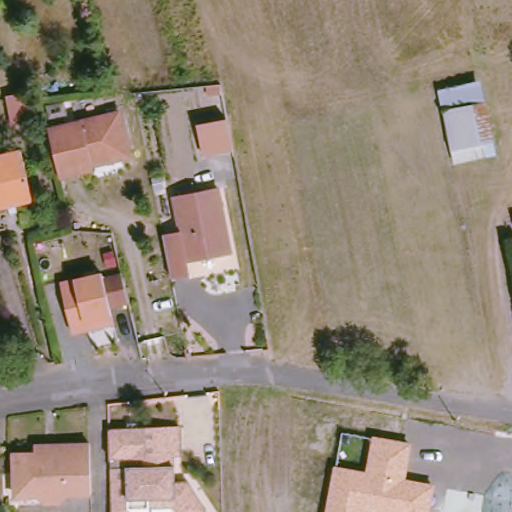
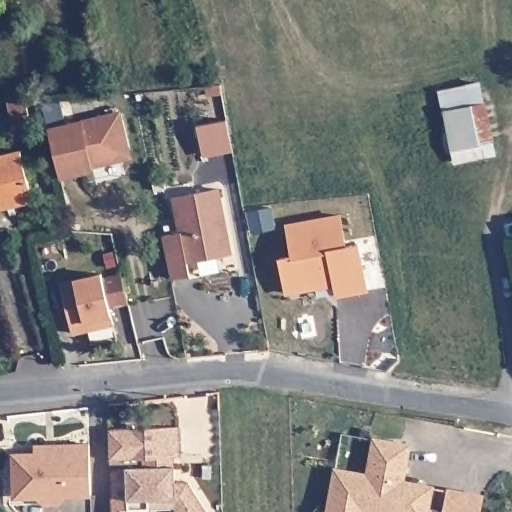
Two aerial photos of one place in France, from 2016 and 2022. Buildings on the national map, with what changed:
unchanged [(457,159),(444,91),(484,83),(497,152),(457,159)]
unchanged [(15,128),(8,101),(25,97),(32,124),(15,128)]
unchanged [(69,128),(89,123),(123,115),(131,150),(125,161),(110,164),(104,161),(98,162),(95,162),(96,171),(81,175),(63,178),(52,132),(69,128)]
unchanged [(30,201),(16,204),(14,197),(0,201),(0,158),(18,154),(30,201)]
unchanged [(194,277),(174,281),(167,239),(185,236),(178,202),(221,194),(226,212),(235,257),(222,260),(192,266),(194,277)]
new [(286,296),(278,260),(289,257),(284,225),(341,214),(346,245),(359,242),(368,292),(336,298),(334,287),(286,296)]
unchanged [(128,300),(109,305),(103,277),(120,273),(128,300)]
unchanged [(98,330),(73,334),(63,285),(103,277),(113,320),(96,323),(98,330)]
unchanged [(189,482),(211,506),(204,512),(177,512),(176,511),(151,511),(151,501),(131,501),(131,512),(115,512),(112,427),(181,427),(182,457),(170,457),(169,464),(178,464),(178,482),(189,482)]
unchanged [(412,444),(406,480),(435,485),(430,512),(326,512),(334,466),(366,471),(372,436),(412,444)]
unchanged [(71,497),(63,505),(48,505),(41,500),(13,501),(12,476),(16,476),(16,453),(60,452),(60,446),(94,446),(97,497),(71,497)]

